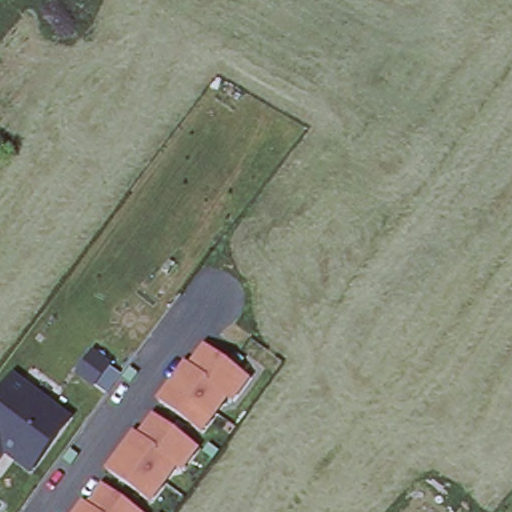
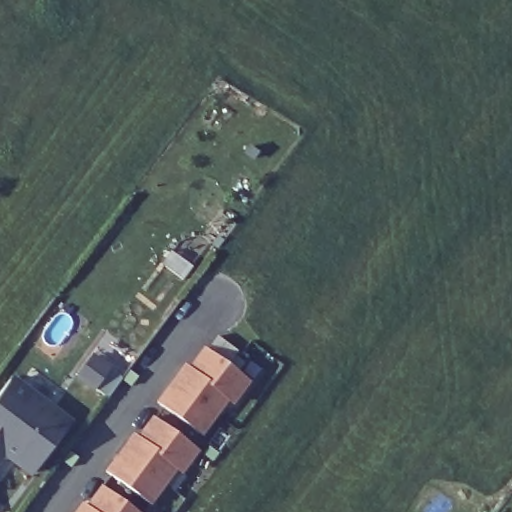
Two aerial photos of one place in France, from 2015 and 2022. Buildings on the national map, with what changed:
unchanged [(233,399),(228,395),(202,430),(160,397),(187,362),(191,365),(206,345),(250,378),(233,399)]
unchanged [(77,371),(92,352),(109,365),(95,384),(77,371)]
unchanged [(14,376),(70,418),(31,470),(3,449),(0,449),(0,394),(14,376)]
unchanged [(182,468),(177,464),(151,499),(108,467),(135,431),(140,434),(155,414),(198,447),(182,468)]
unchanged [(84,500),(88,503),(103,483),(141,512),(75,512),(84,500)]

